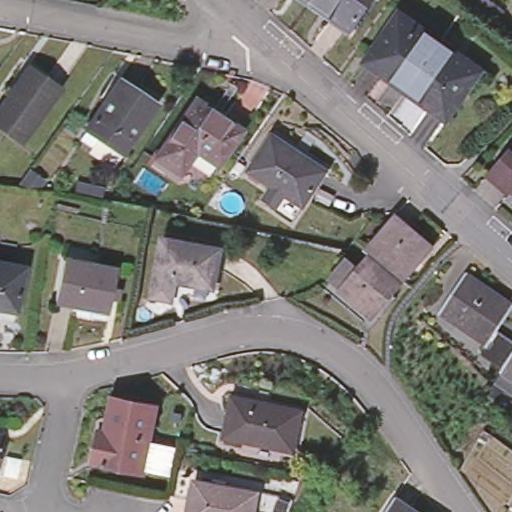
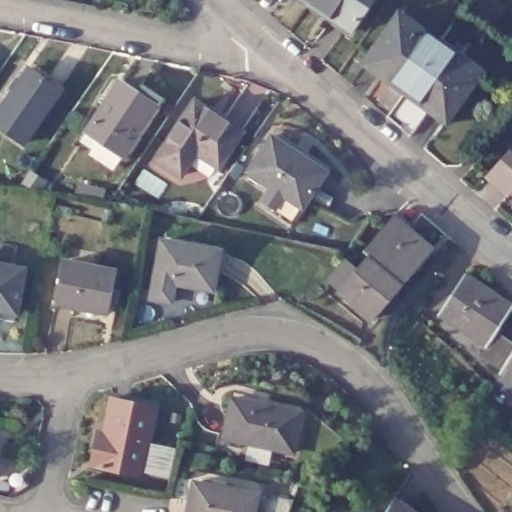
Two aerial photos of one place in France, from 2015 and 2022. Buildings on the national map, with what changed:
unchanged [(343,27),(304,0),(362,0),(343,27)]
unchanged [(473,8),(479,0),(491,0),(506,10),(497,24),(473,8)]
unchanged [(363,58),(398,8),(440,36),(405,86),(363,58)]
unchanged [(440,36),(480,65),(446,115),(405,86),(440,36)]
unchanged [(58,85),(20,139),(0,124),(0,101),(27,63),(58,85)]
unchanged [(117,81),(154,105),(120,155),(84,131),(117,81)]
unchanged [(193,91),(239,122),(215,156),(194,142),(178,165),(154,149),(193,91)]
unchanged [(270,136),(323,172),(300,206),(247,171),(270,136)]
unchanged [(507,149),(512,153),(512,192),(510,190),(507,192),(485,174),(507,149)]
unchanged [(395,215),(433,248),(403,281),(372,253),(366,247),(395,215)]
unchanged [(215,280),(175,273),(172,293),(153,290),(163,230),(221,240),(215,280)]
unchanged [(403,281),(371,317),(340,290),(372,253),(403,281)]
unchanged [(105,312),(52,300),(62,256),(115,269),(105,312)]
unchanged [(12,312),(0,310),(0,263),(21,267),(12,312)]
unchanged [(502,368),(505,365),(482,350),(487,342),(440,310),(467,268),(512,297),(512,305),(498,326),(512,335),(512,375),(502,368)]
unchanged [(102,428),(110,394),(152,403),(137,470),(87,460),(95,426),(102,428)]
unchanged [(298,410),(288,451),(222,435),(232,395),(298,410)]
unchanged [(261,485),(256,512),(190,512),(198,472),(261,485)]
unchanged [(382,512),(392,495),(418,512),(382,512)]
unchanged [(512,497),(512,505),(508,502),(512,497)]

